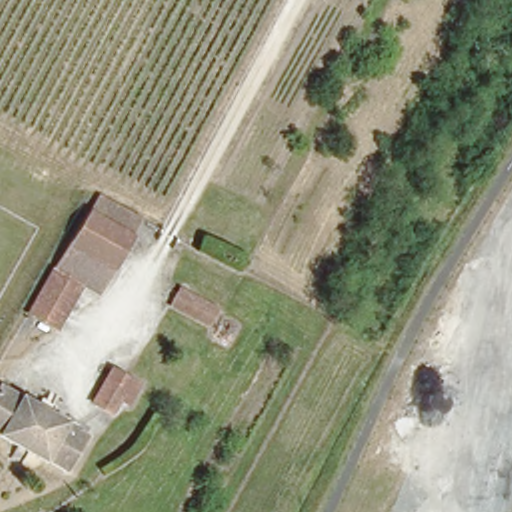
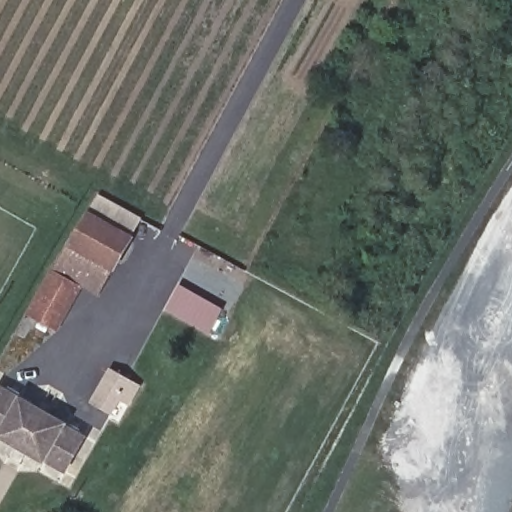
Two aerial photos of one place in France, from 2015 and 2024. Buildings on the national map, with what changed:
unchanged [(144,220),(99,300),(81,292),(57,337),(19,316),(97,194),(144,220)]
new [(224,308),(210,333),(167,310),(180,285),(224,308)]
unchanged [(94,401),(110,377),(125,387),(110,411),(94,401)]
unchanged [(58,475),(0,439),(0,389),(16,398),(20,392),(62,417),(57,423),(81,437),(58,475)]

